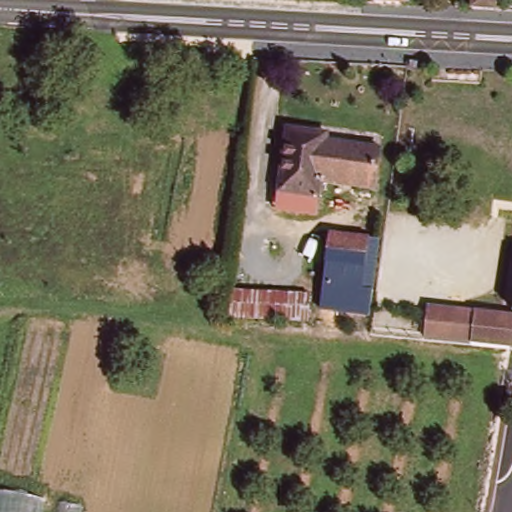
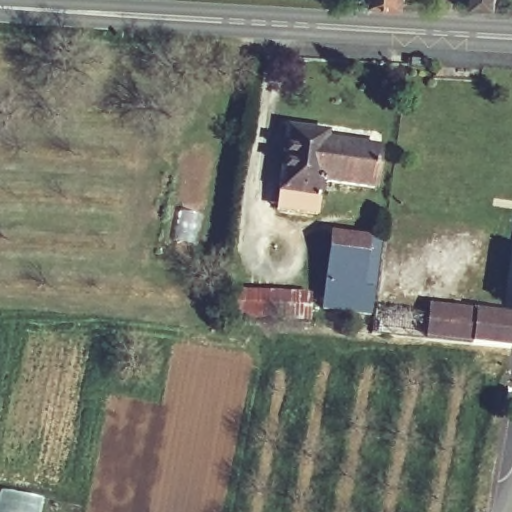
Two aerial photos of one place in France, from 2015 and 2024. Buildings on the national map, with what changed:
unchanged [(404,2),(371,0),(372,0),(404,0),(404,2)]
unchanged [(495,6),(469,5),(470,0),(496,0),(495,6)]
unchanged [(373,193),(319,187),(317,210),(299,208),(280,205),(289,135),(308,137),(311,138),(311,144),(378,153),(373,193)]
unchanged [(331,233),(379,239),(375,270),(328,264),(331,233)]
unchanged [(369,315),(321,308),(328,264),(375,270),(369,315)]
unchanged [(238,322),(239,297),(314,300),(314,324),(238,322)]
unchanged [(478,312),(474,346),(429,340),(434,307),(478,312)]
unchanged [(474,346),(478,312),(512,317),(512,352),(474,346)]
unchanged [(90,512),(2,512),(8,488),(90,512)]

